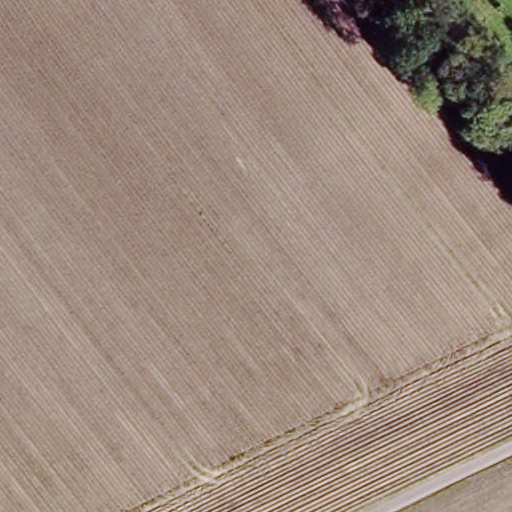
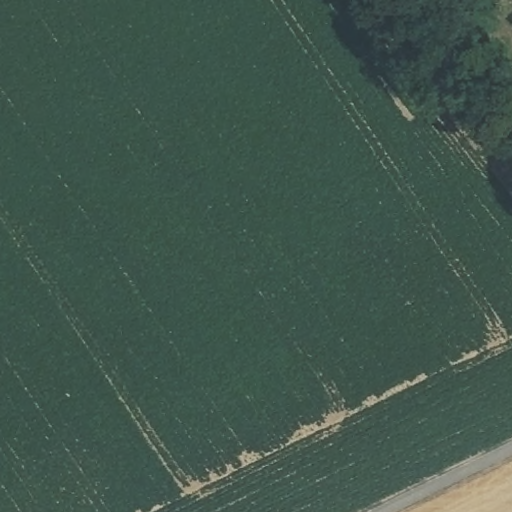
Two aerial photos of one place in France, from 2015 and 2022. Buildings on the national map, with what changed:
[]

